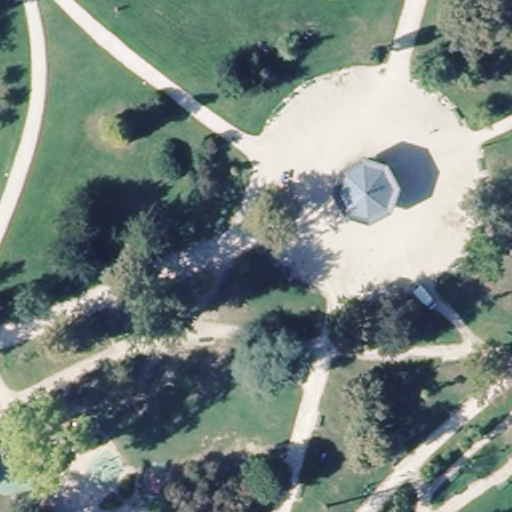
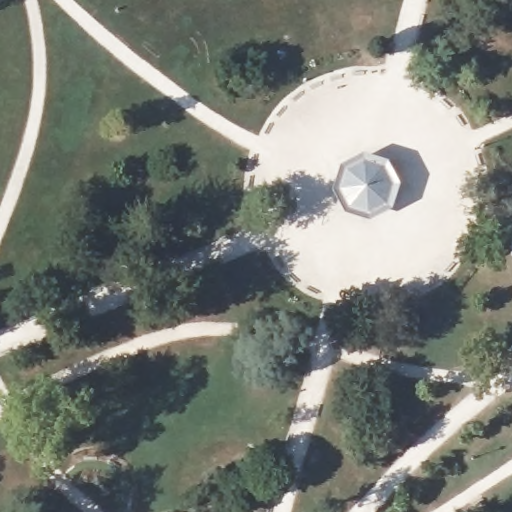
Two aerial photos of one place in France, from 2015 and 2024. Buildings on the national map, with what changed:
unchanged [(338,192),(343,172),(363,162),(385,169),(394,188),(389,207),(368,218),(346,211),(338,192)]

